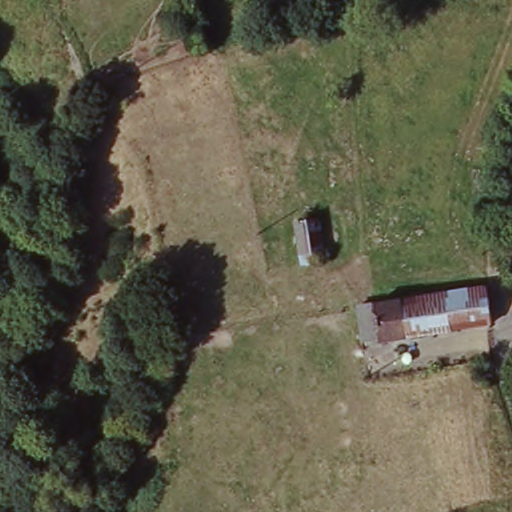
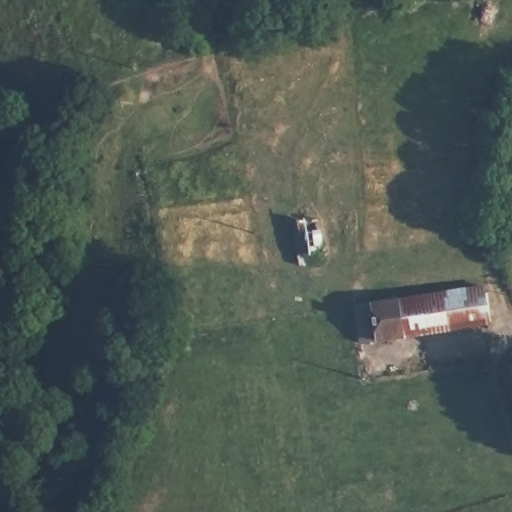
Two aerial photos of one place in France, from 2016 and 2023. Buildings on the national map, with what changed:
unchanged [(313,219),(317,252),(292,256),(289,222),(313,219)]
unchanged [(486,286),(489,322),(377,337),(371,303),(486,286)]

